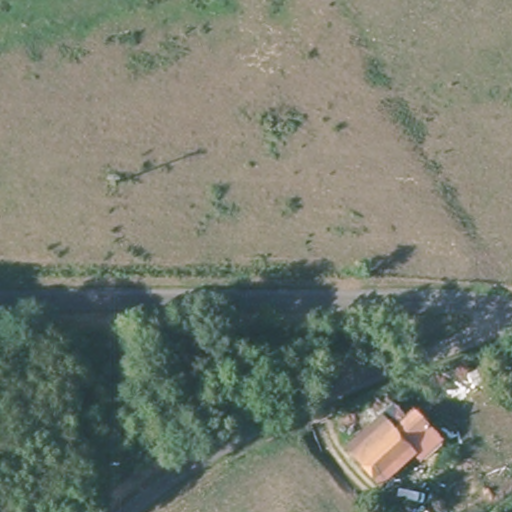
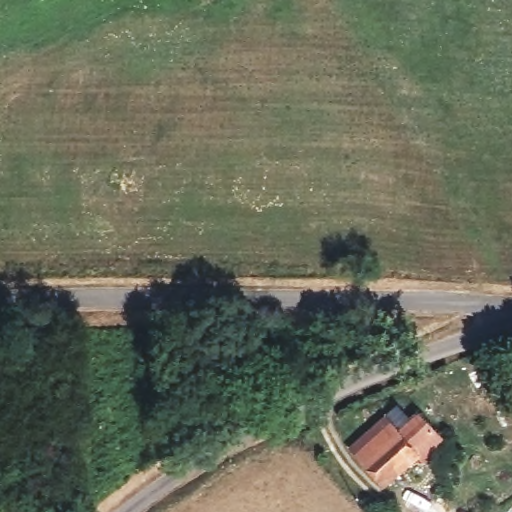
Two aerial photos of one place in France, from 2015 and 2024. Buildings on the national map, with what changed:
unchanged [(411,452),(415,457),(381,484),(350,447),(396,407),(408,421),(418,412),(435,431),(411,452)]

